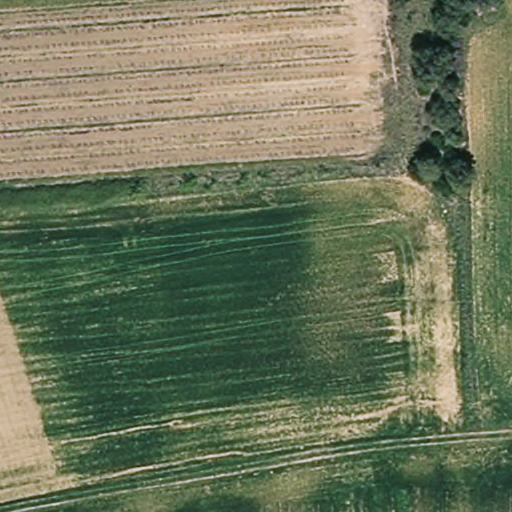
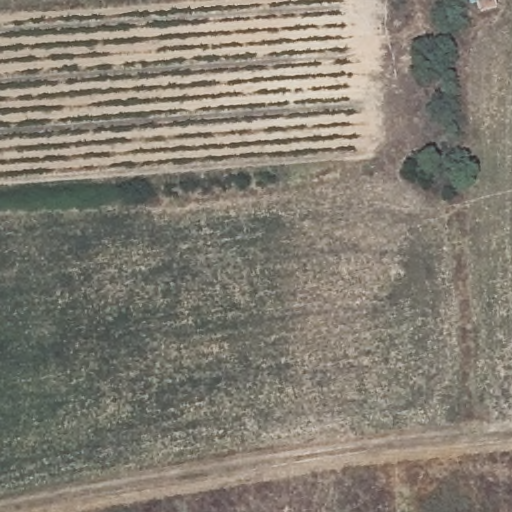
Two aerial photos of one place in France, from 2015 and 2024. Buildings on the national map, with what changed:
unchanged [(481,8),(478,0),(497,0),(499,7),(481,8)]

